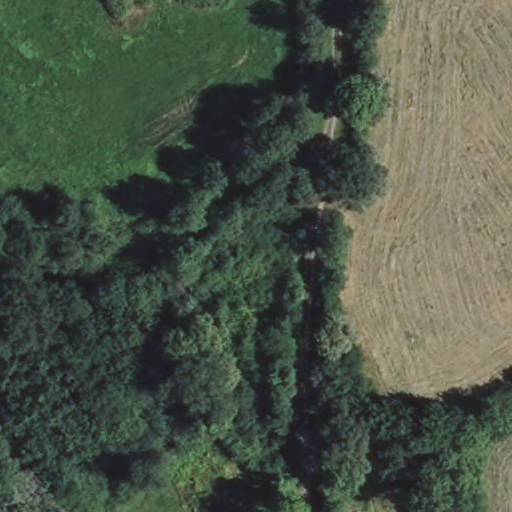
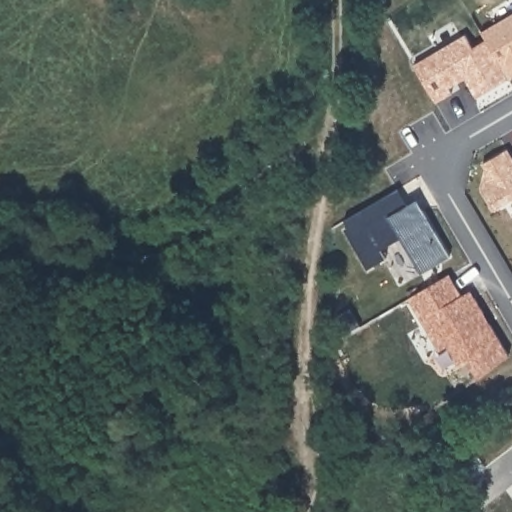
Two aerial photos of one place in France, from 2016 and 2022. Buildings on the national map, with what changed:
new [(476,99),(465,80),(448,88),(451,94),(434,102),(414,65),(464,36),(472,49),(487,41),(481,33),(512,15),(512,78),(476,99)]
new [(508,150),(512,159),(512,202),(510,201),(492,211),(481,190),(485,172),(482,164),(491,150),(508,150)]
new [(406,206),(416,201),(450,257),(421,272),(401,237),(380,249),(385,257),(368,267),(346,229),(350,226),(346,220),(398,192),(406,206)]
new [(509,356),(477,381),(466,359),(458,364),(447,345),(439,351),(409,299),(449,275),(461,296),(471,292),(509,356)]

